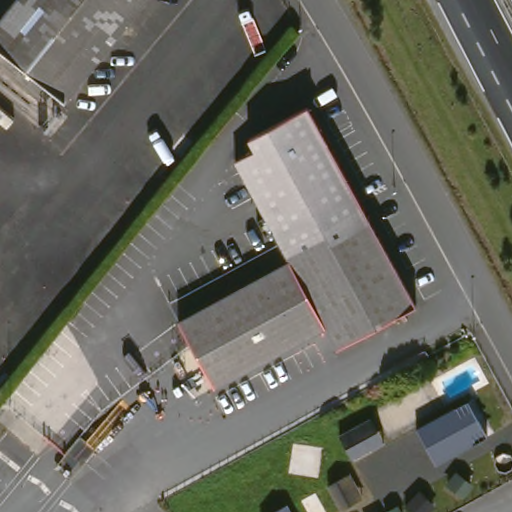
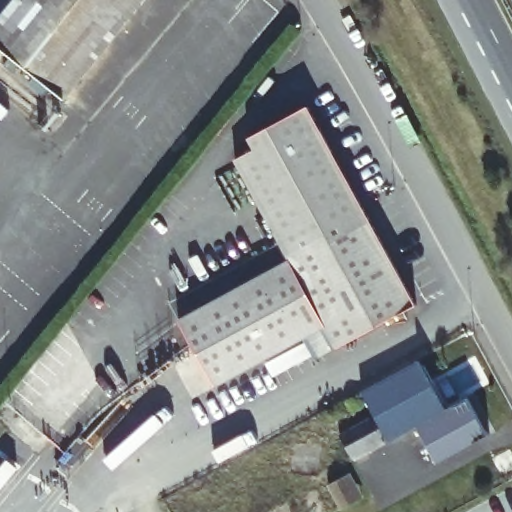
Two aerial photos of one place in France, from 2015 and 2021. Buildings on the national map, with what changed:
unchanged [(22,0),(151,0),(69,101),(0,46),(0,27),(22,0)]
unchanged [(319,105),(375,219),(373,220),(295,260),(243,154),(261,145),(258,135),(319,105)]
unchanged [(373,220),(375,219),(421,312),(338,353),(326,329),(215,383),(183,317),(262,277),(295,260),(373,220)]
new [(447,410),(468,397),(471,405),(423,428),(441,464),(437,466),(418,429),(389,444),(362,393),(420,362),(447,410)]
unchanged [(477,402),(496,439),(442,466),(423,428),(477,402)]
unchanged [(379,445),(352,459),(339,435),(364,422),(379,445)]
demolished [(325,447),(325,479),(291,477),(293,446),(325,447)]
demolished [(276,512),(286,506),(289,512),(276,512)]

